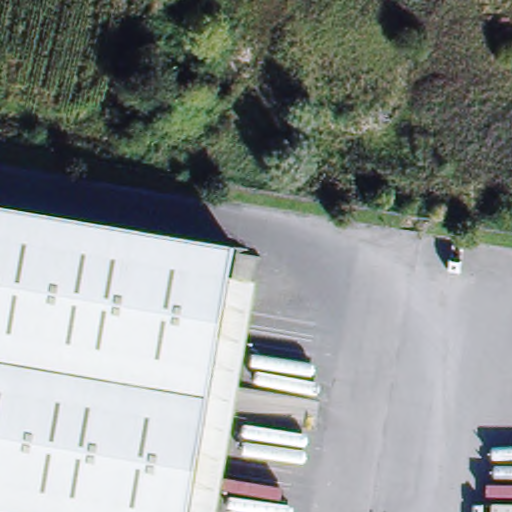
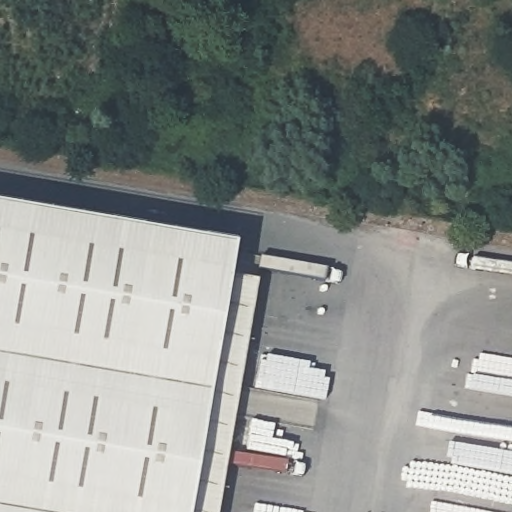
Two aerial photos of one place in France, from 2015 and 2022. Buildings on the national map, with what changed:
unchanged [(234,248),(229,278),(188,512),(0,512),(0,208),(126,229),(234,248)]

